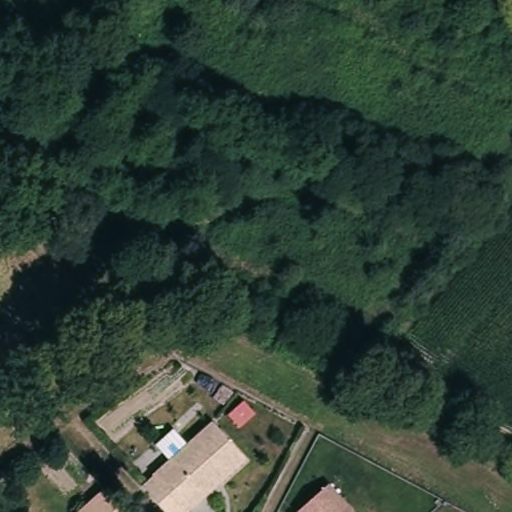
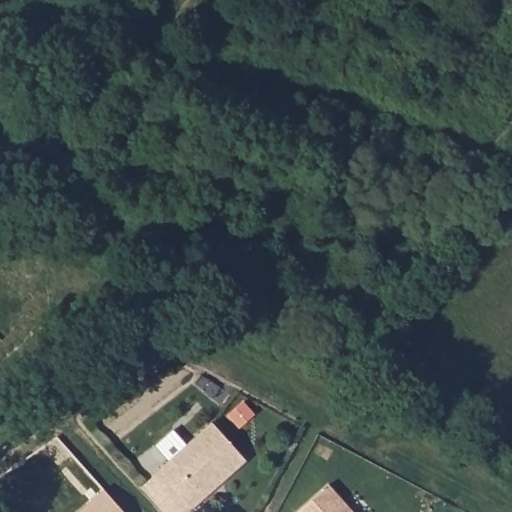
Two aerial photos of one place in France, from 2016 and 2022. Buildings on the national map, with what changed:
unchanged [(246,460),(188,512),(184,512),(152,476),(212,422),(246,460)]
unchanged [(352,512),(297,512),(327,485),(352,512)]
unchanged [(124,512),(79,512),(104,489),(121,508),(124,512)]

